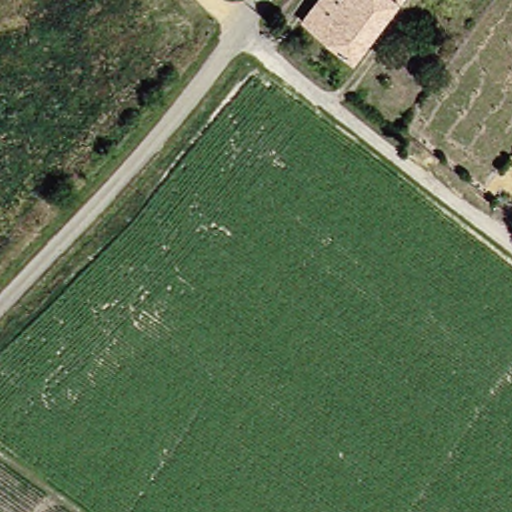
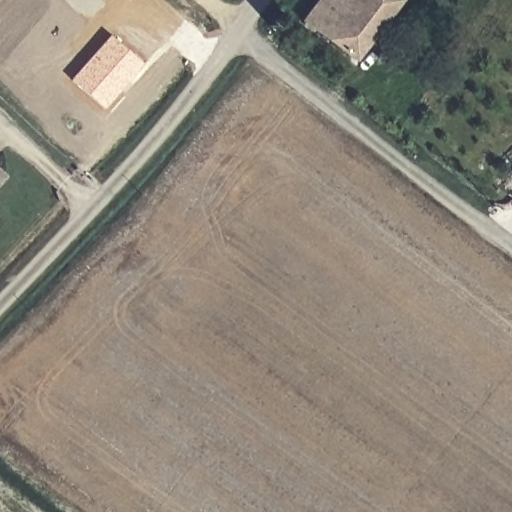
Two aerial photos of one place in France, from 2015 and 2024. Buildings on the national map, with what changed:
unchanged [(392,0),(350,57),(300,17),(313,0),(392,0)]
new [(105,109),(71,78),(109,35),(143,65),(105,109)]
new [(0,184),(0,170),(7,176),(0,184)]

